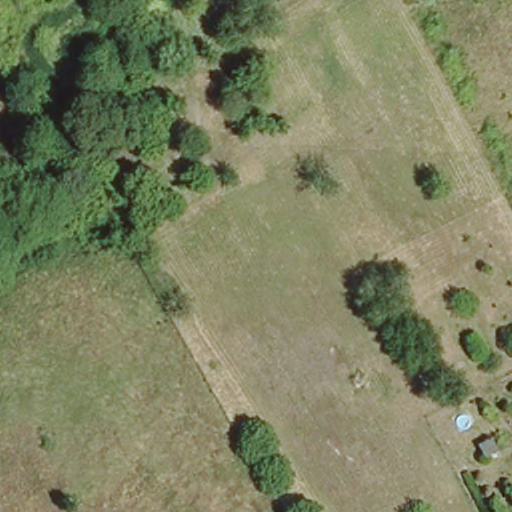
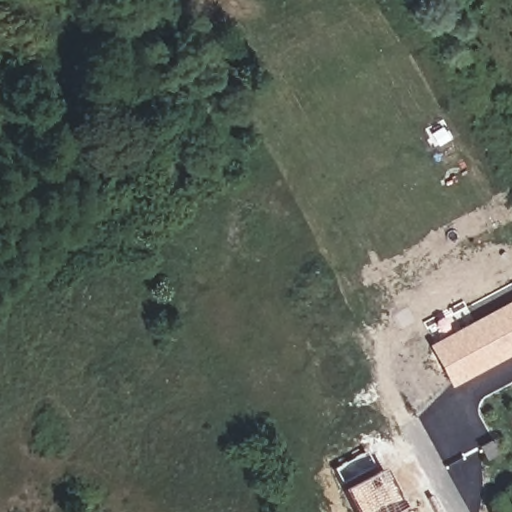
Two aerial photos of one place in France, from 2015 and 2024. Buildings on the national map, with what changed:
unchanged [(193,36),(208,29),(214,40),(199,48),(193,36)]
new [(452,385),(429,343),(512,298),(512,353),(452,385)]
new [(364,453),(373,475),(384,469),(404,508),(399,512),(354,512),(342,491),(332,469),(364,453)]

